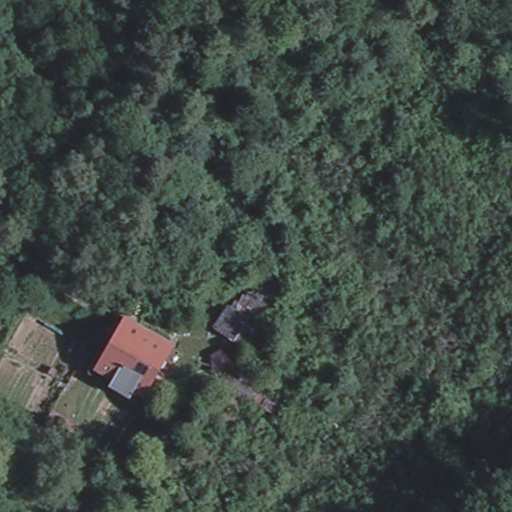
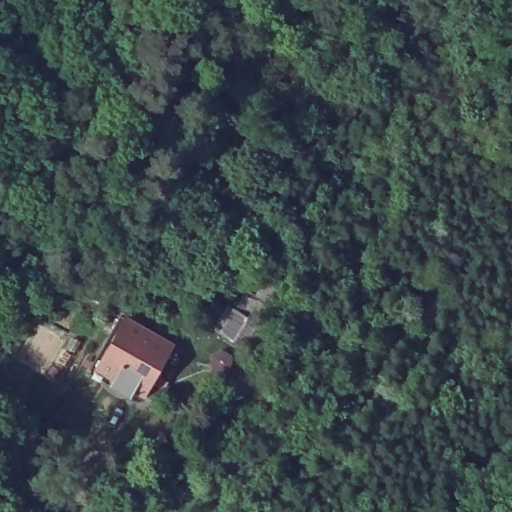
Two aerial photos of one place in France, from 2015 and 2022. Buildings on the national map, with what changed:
unchanged [(90,371),(97,358),(121,321),(169,349),(139,399),(129,393),(125,399),(106,388),(110,382),(95,373),(90,371)]
unchanged [(22,422),(40,438),(26,453),(20,448),(19,449),(7,439),(22,422)]

